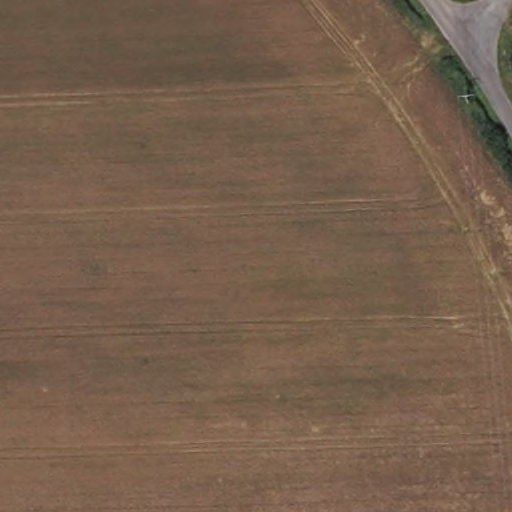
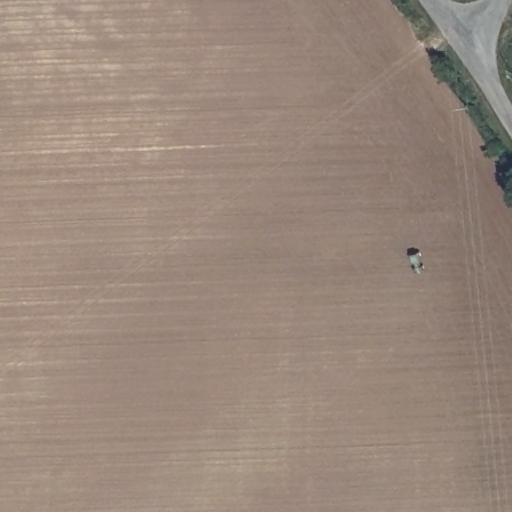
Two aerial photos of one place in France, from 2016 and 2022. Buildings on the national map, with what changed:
[]

